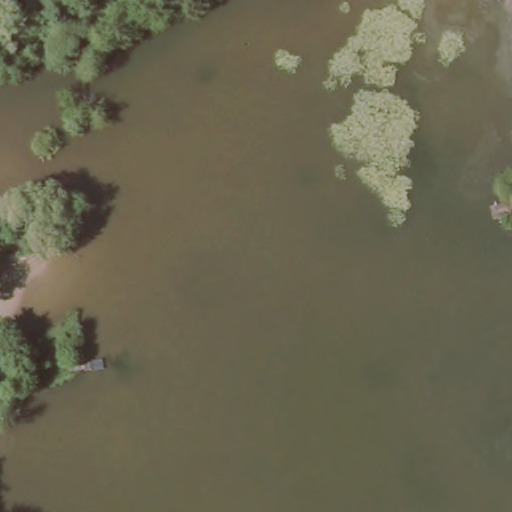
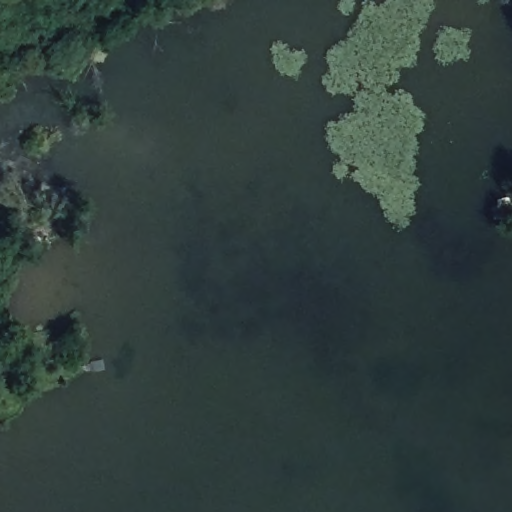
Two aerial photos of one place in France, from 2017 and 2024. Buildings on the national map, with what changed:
unchanged [(40,7),(40,34),(0,33),(0,9),(40,7)]

